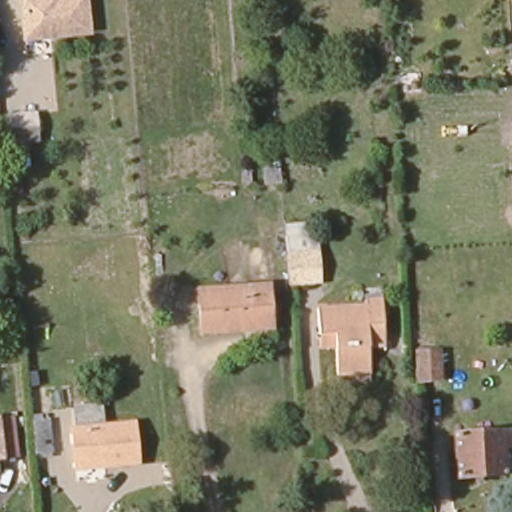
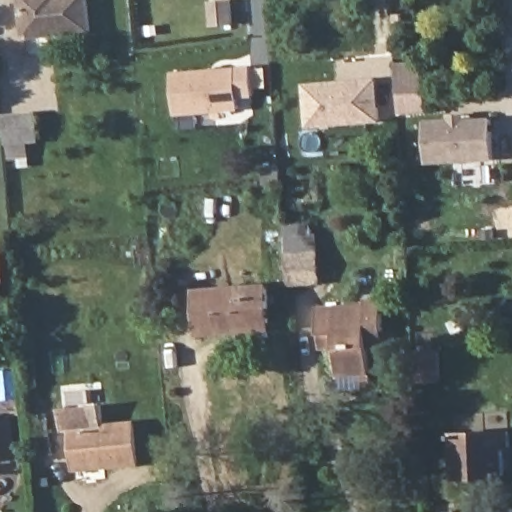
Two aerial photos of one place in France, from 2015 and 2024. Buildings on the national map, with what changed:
unchanged [(88,30),(22,36),(20,0),(84,0),(88,30)]
new [(233,1),(235,26),(215,27),(214,2),(233,1)]
new [(254,97),(239,99),(240,112),(177,117),(174,72),(251,66),(254,97)]
new [(402,109),(401,87),(400,77),(425,76),(425,86),(426,107),(402,109)]
new [(308,128),(303,84),(378,79),(381,122),(308,128)]
unchanged [(4,116),(37,114),(39,142),(6,144),(4,116)]
new [(427,164),(425,121),(450,120),(450,115),(466,114),(466,119),(492,117),(495,161),(427,164)]
unchanged [(285,224),(318,222),(325,287),(292,290),(285,224)]
unchanged [(246,330),(205,334),(201,292),(268,287),(270,320),(270,328),(246,330)]
unchanged [(326,330),(318,330),(318,306),(367,301),(368,297),(382,297),(383,327),(383,341),(368,341),(368,366),(340,367),(338,346),(325,347),(326,330)]
unchanged [(437,352),(438,377),(419,378),(417,355),(437,352)]
unchanged [(142,462),(79,469),(70,403),(109,398),(112,423),(140,423),(142,462)]
unchanged [(0,458),(0,420),(4,457),(0,458)]
unchanged [(51,424),(52,453),(37,455),(35,425),(51,424)]
unchanged [(505,472),(505,475),(457,478),(456,437),(507,432),(508,447),(512,447),(512,471),(505,472)]

